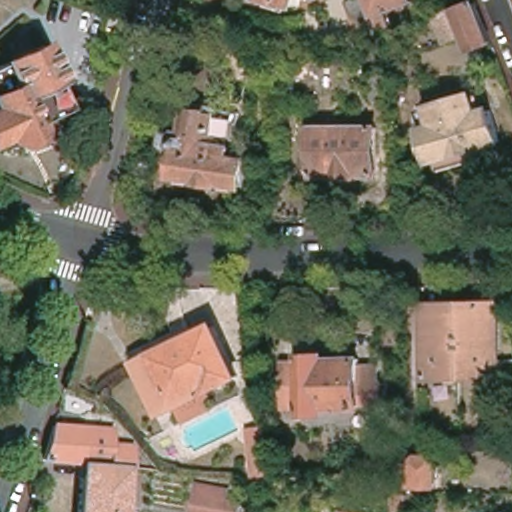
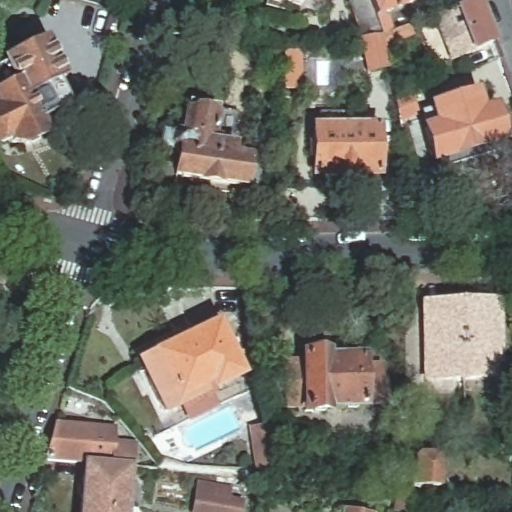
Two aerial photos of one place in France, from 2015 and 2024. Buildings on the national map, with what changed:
unchanged [(265,2),(265,0),(300,0),(300,4),(290,1),(289,3),(286,2),(284,8),(265,2)]
unchanged [(370,37),(357,3),(364,0),(372,0),(384,32),(370,37)]
unchanged [(374,0),(419,0),(420,1),(393,12),(400,32),(389,37),(374,0)]
unchanged [(497,42),(475,51),(469,35),(448,43),(437,16),(458,7),(461,12),(482,4),(497,42)]
unchanged [(46,43),(62,78),(55,82),(67,111),(37,124),(39,130),(36,137),(21,145),(13,145),(9,137),(0,140),(0,64),(46,43)]
unchanged [(369,75),(384,74),(385,99),(371,100),(369,75)]
unchanged [(446,166),(443,157),(437,158),(426,124),(435,121),(431,109),(445,105),(443,101),(471,92),(478,112),(493,107),(504,139),(499,140),(502,149),(446,166)]
unchanged [(171,157),(161,155),(159,154),(159,152),(158,148),(154,147),(156,138),(160,139),(161,135),(165,132),(174,134),(178,113),(183,114),(185,105),(213,110),(212,117),(234,121),(228,162),(254,167),(249,191),(168,177),(171,157)]
unchanged [(358,172),(358,178),(332,179),(332,174),(313,175),(313,132),(375,129),(377,172),(358,172)]
unchanged [(426,302),(496,302),(496,358),(483,359),(483,372),(426,372),(426,302)]
unchanged [(213,385),(208,375),(200,379),(202,384),(179,396),(181,401),(165,410),(138,359),(212,320),(238,371),(213,385)]
unchanged [(290,364),(307,365),(307,352),(333,354),(333,358),(366,359),(366,365),(383,366),(382,382),(390,383),(389,405),(368,405),(368,410),(333,410),(333,417),(305,417),(306,410),(290,408),(290,364)]
unchanged [(112,427),(111,441),(132,442),(130,459),(46,453),(56,422),(112,427)]
unchanged [(275,475),(259,478),(250,432),(267,430),(275,475)]
unchanged [(410,481),(415,481),(414,461),(419,456),(434,456),(437,460),(437,486),(410,486),(410,481)]
unchanged [(127,512),(80,512),(84,459),(131,462),(127,512)]
unchanged [(231,492),(229,502),(243,504),(241,512),(195,512),(200,487),(231,492)]
unchanged [(370,512),(349,512),(350,511),(370,512)]

